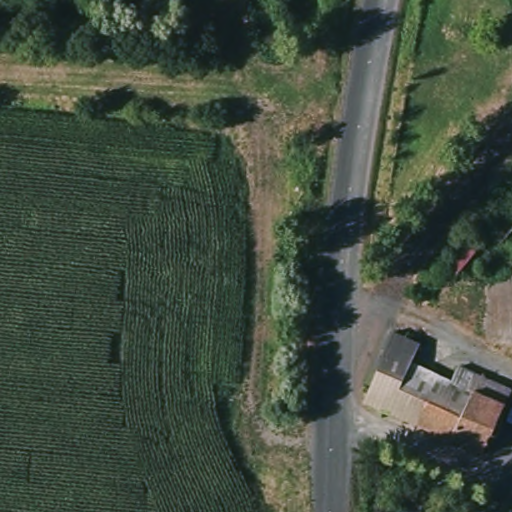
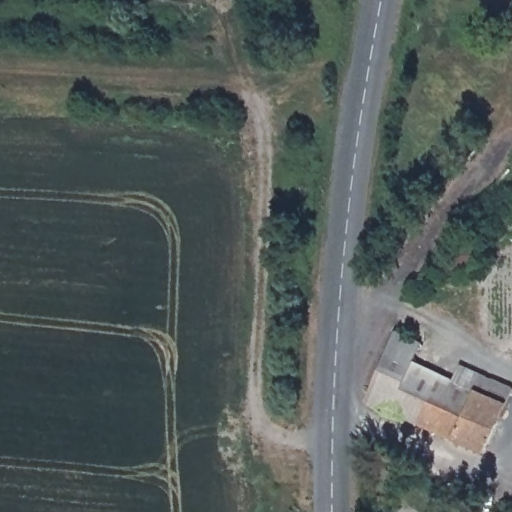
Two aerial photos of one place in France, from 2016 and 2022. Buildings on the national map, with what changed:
unchanged [(500,252),(470,293),(445,273),(476,234),(500,252)]
unchanged [(397,331),(425,345),(415,365),(451,384),(457,373),(508,399),(480,456),(366,404),(366,401),(397,331)]

